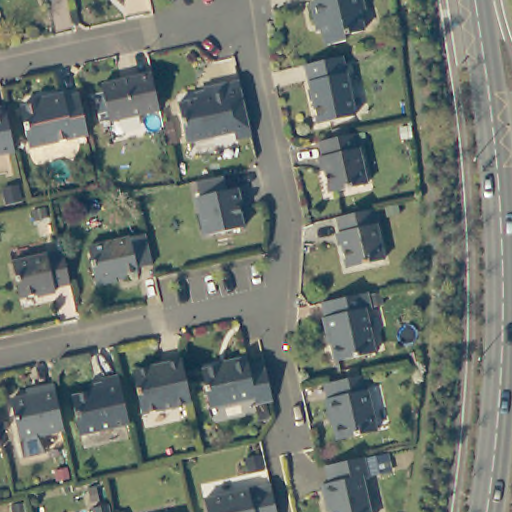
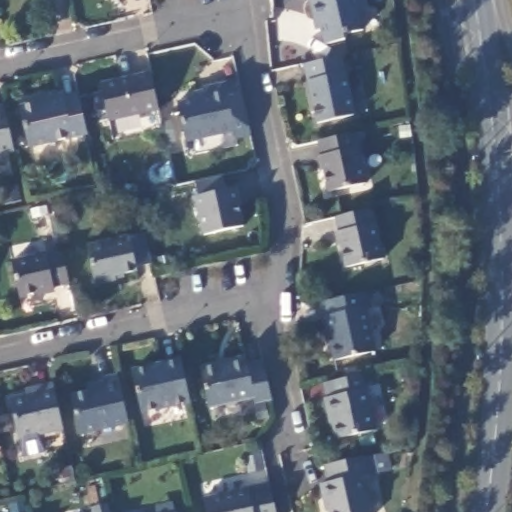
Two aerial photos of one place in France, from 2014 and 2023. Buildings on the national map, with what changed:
unchanged [(362,7),(356,9),(359,28),(343,31),(339,38),(322,42),(317,17),(312,18),(308,0),(360,0),(362,7)]
unchanged [(341,57),(355,117),(319,124),(305,63),(341,57)]
unchanged [(110,121),(102,85),(151,74),(158,109),(110,121)]
unchanged [(177,103),(204,96),(202,88),(224,83),(236,130),(186,142),(177,103)]
unchanged [(30,149),(21,108),(46,102),(45,98),(64,93),(65,97),(79,94),(87,134),(30,149)]
unchanged [(0,153),(0,108),(4,107),(15,150),(0,153)]
unchanged [(354,134),(357,148),(358,148),(366,184),(329,192),(321,156),(323,155),(320,141),(354,134)]
unchanged [(241,208),(239,209),(244,229),(205,238),(197,199),(200,198),(197,183),(225,176),(228,192),(237,190),(241,208)]
unchanged [(371,210),(373,224),(376,223),(383,259),(347,267),(338,230),(342,230),(338,218),(371,210)]
unchanged [(137,269),(138,273),(116,278),(117,281),(97,286),(88,247),(145,234),(152,266),(137,269)]
unchanged [(45,287),(46,290),(11,298),(2,263),(36,254),(37,258),(52,254),(59,284),(45,287)]
unchanged [(365,294),(367,308),(363,309),(372,351),(331,362),(326,335),(323,335),(320,315),(321,315),(318,303),(365,294)]
unchanged [(256,404),(255,397),(211,408),(202,369),(229,363),(229,361),(246,357),(247,363),(262,360),(271,400),(256,404)]
unchanged [(190,403),(142,414),(132,373),(181,361),(190,403)]
unchanged [(328,380),(363,372),(376,426),(337,436),(332,412),(330,413),(326,395),(330,393),(328,380)]
unchanged [(127,424),(80,435),(70,396),(102,388),(101,380),(117,377),(127,424)]
unchanged [(64,430),(20,440),(10,401),(39,393),(37,390),(54,386),(64,430)]
unchanged [(368,457),(372,474),(366,476),(375,512),(338,512),(335,502),(329,503),(325,486),(333,484),(330,466),(335,465),(362,459),(368,457)]
unchanged [(268,484),(272,504),(274,512),(207,512),(204,498),(268,484)]

